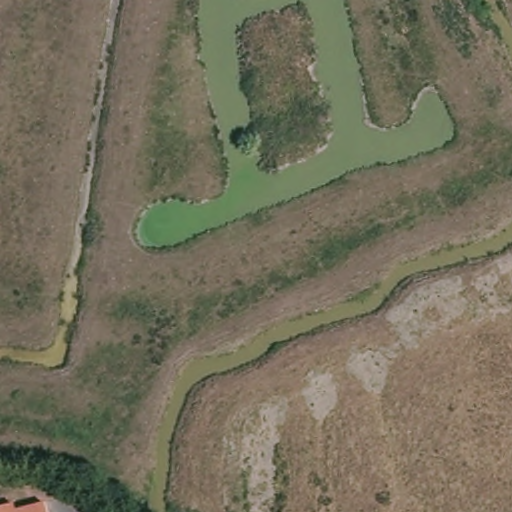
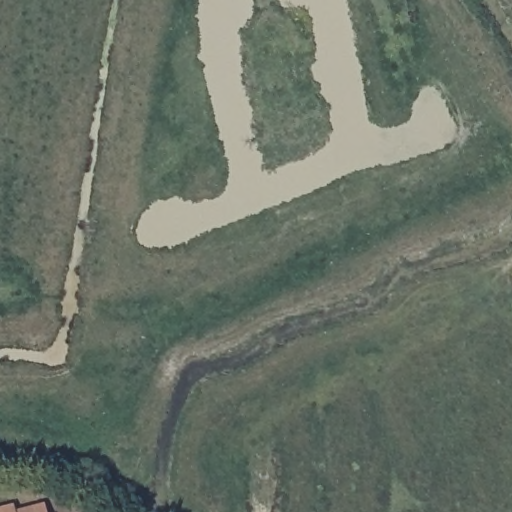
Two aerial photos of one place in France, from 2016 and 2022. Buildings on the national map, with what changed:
unchanged [(45,512),(0,512),(0,507),(12,503),(14,510),(42,502),(45,512)]

